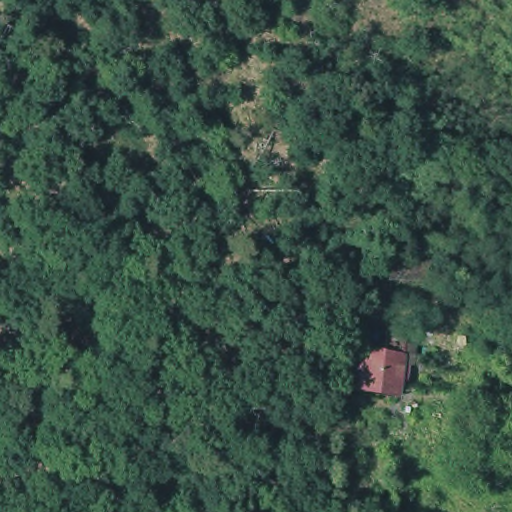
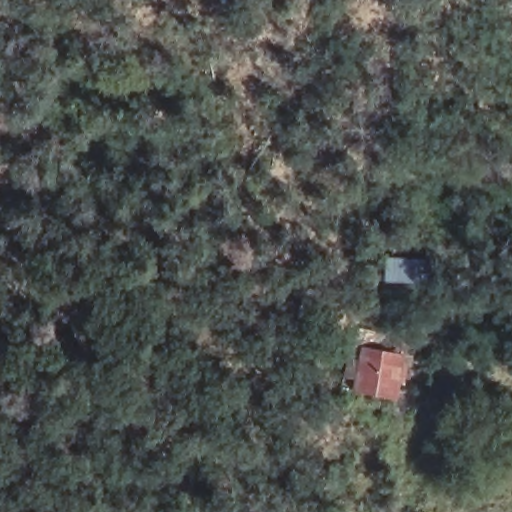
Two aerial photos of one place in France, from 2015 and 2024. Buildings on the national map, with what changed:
unchanged [(430,263),(429,283),(387,281),(387,262),(430,263)]
unchanged [(402,361),(400,375),(392,374),(389,394),(352,387),(360,345),(397,352),(395,360),(402,361)]

